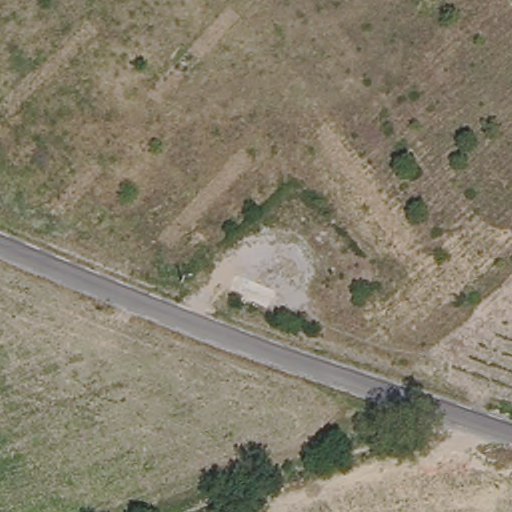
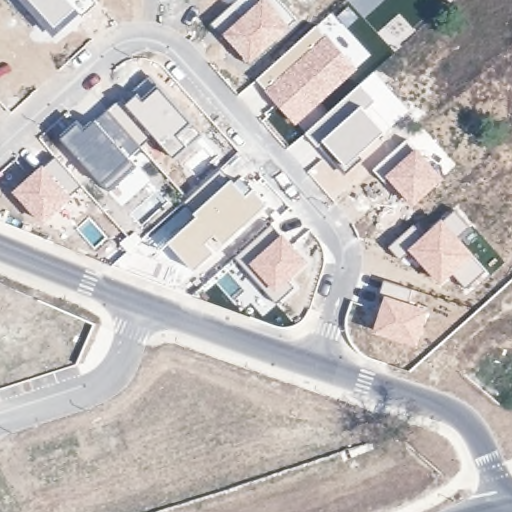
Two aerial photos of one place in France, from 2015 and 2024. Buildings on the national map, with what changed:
new [(97,2),(82,15),(78,11),(54,34),(25,0),(95,0),(97,2)]
new [(159,1),(159,0),(169,0),(159,1)]
new [(236,0),(275,0),(296,22),(250,63),(211,23),(236,0)]
new [(331,12),(336,16),(347,28),(372,54),(359,66),(318,24),(331,12)]
new [(399,13),(415,30),(395,49),(378,33),(399,13)]
new [(318,24),(359,66),(297,124),(256,79),(318,24)]
new [(374,71),(408,110),(345,169),(307,131),(374,71)]
new [(78,120),(85,127),(118,100),(123,105),(149,76),(200,132),(173,156),(152,134),(131,157),(137,164),(108,190),(59,137),(78,120)]
new [(301,136),(319,154),(303,167),(286,149),(301,136)]
new [(413,206),(383,176),(375,168),(405,141),(414,149),(444,179),(413,206)]
new [(55,156),(81,185),(42,224),(13,191),(55,156)]
new [(232,179),(247,195),(253,189),(267,205),(223,244),(215,235),(206,243),(214,252),(194,271),(168,242),(197,216),(195,213),(184,201),(220,168),(232,179)]
new [(459,234),(475,254),(453,273),(440,283),(408,250),(400,258),(389,246),(414,223),(424,233),(445,217),(459,234)]
new [(279,234),(277,231),(278,229),(311,262),(292,280),(298,287),(277,304),(246,264),(279,234)]
new [(380,292),(384,279),(413,289),(408,302),(429,309),(417,346),(372,331),(384,293),(380,292)]

